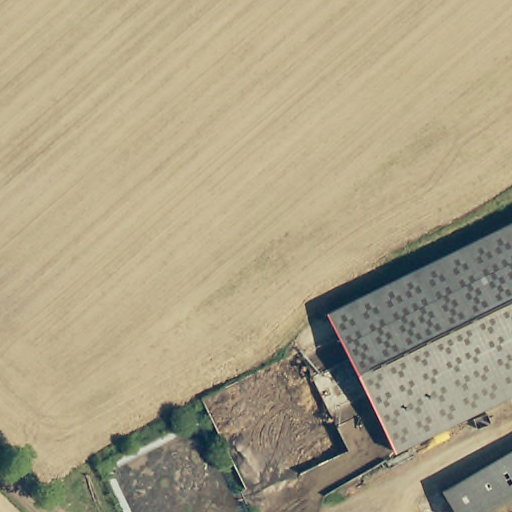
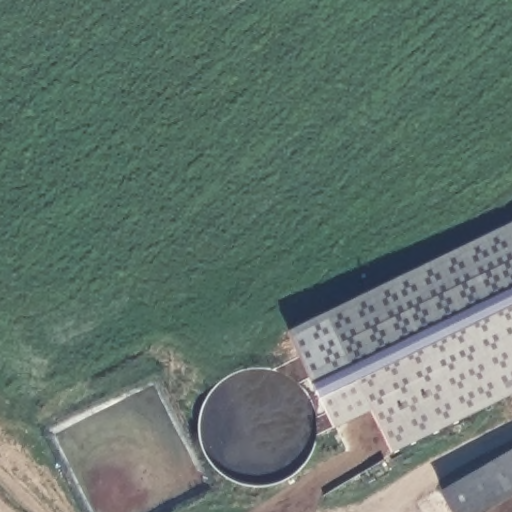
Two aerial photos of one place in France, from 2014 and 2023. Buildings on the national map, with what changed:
unchanged [(391,449),(326,311),(512,223),(512,391),(391,449)]
new [(291,330),(326,312),(372,409),(335,425),(291,330)]
unchanged [(482,512),(454,512),(441,490),(512,449),(512,495),(482,512)]

